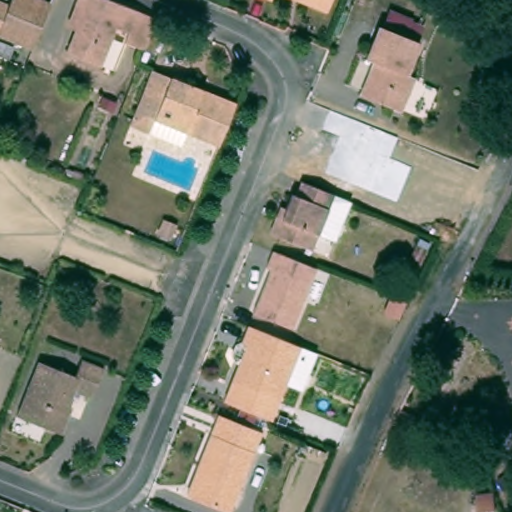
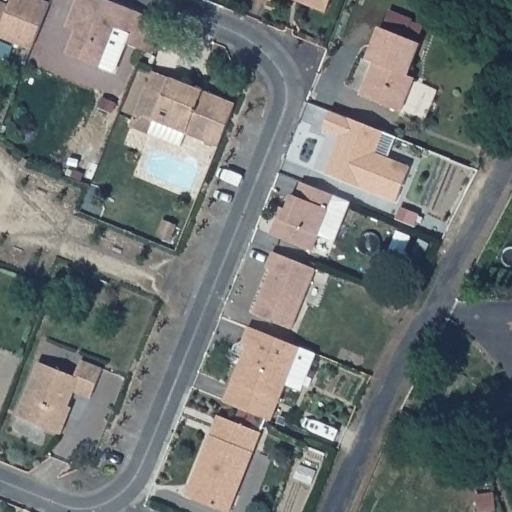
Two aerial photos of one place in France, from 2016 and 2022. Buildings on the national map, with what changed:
unchanged [(0,40),(0,3),(7,6),(9,0),(37,0),(48,4),(29,51),(0,40)]
unchanged [(122,44),(126,35),(113,30),(98,67),(64,54),(73,31),(64,27),(72,6),(75,0),(104,0),(154,20),(142,52),(122,44)]
unchanged [(265,0),(268,0),(268,1),(265,0)]
unchanged [(294,1),(290,0),(328,0),(323,13),(294,1)]
unchanged [(377,28),(417,45),(405,76),(412,79),(398,113),(357,96),(368,70),(370,64),(363,61),(377,28)]
unchanged [(127,128),(133,114),(150,72),(233,105),(216,147),(183,135),(178,149),(127,128)]
new [(384,131),(396,136),(388,157),(411,166),(397,201),(326,172),(336,147),(341,135),(324,128),(331,110),(384,131)]
unchanged [(309,252),(267,235),(274,219),(278,208),(283,210),(289,195),(292,197),(298,183),(331,196),(309,252)]
unchanged [(172,227),(167,240),(155,235),(160,222),(172,227)]
unchanged [(313,270),(288,330),(250,315),(268,271),(263,270),(270,253),(313,270)]
unchanged [(278,400),(229,379),(250,330),(296,347),(278,400)]
unchanged [(65,416),(57,436),(13,418),(35,363),(71,378),(78,361),(99,370),(87,400),(70,393),(64,408),(68,409),(65,416)]
unchanged [(278,400),(272,418),(221,398),(229,379),(278,400)]
unchanged [(192,474),(214,417),(257,435),(226,512),(219,512),(188,500),(182,497),(192,474)]
unchanged [(472,496),(490,494),(492,512),(474,512),(472,496)]

